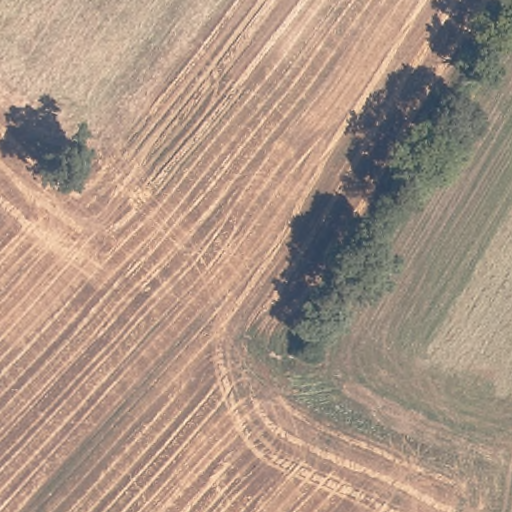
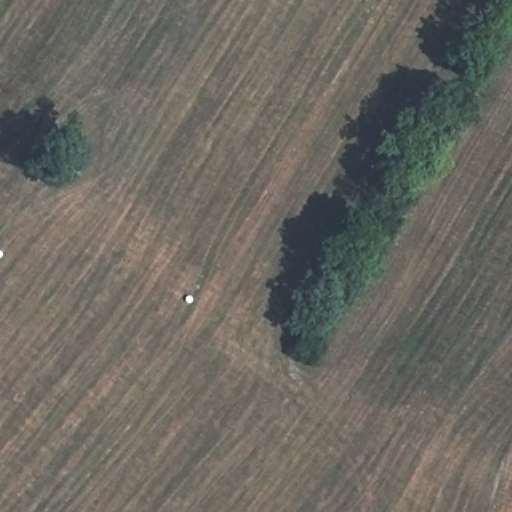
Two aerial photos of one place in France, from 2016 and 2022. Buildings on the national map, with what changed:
[]

